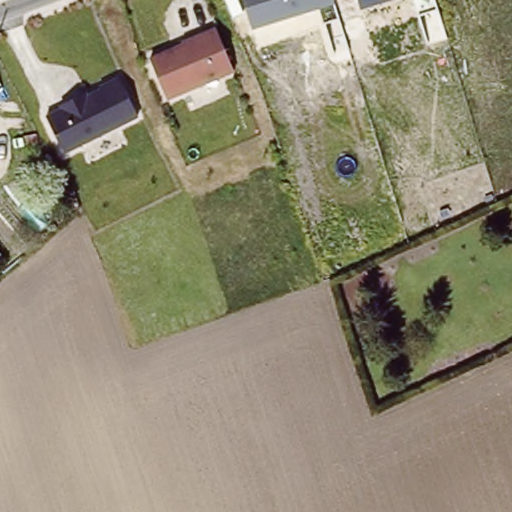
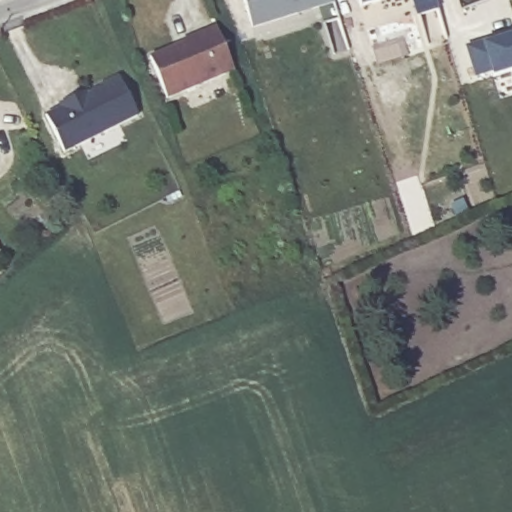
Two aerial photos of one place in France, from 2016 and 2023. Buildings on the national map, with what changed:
unchanged [(336,6),(252,29),(243,0),(334,0),(336,6)]
unchanged [(362,11),(358,0),(394,0),(362,11)]
unchanged [(216,26),(232,72),(167,99),(150,56),(216,26)]
new [(510,73),(492,78),(490,72),(474,77),(465,46),(492,37),(492,41),(512,35),(512,74),(510,73)]
unchanged [(120,75),(138,117),(62,155),(45,114),(120,75)]
unchanged [(15,244),(0,256),(0,222),(9,234),(15,244)]

